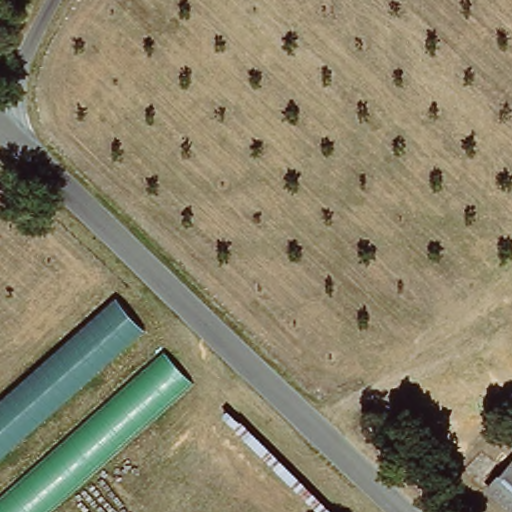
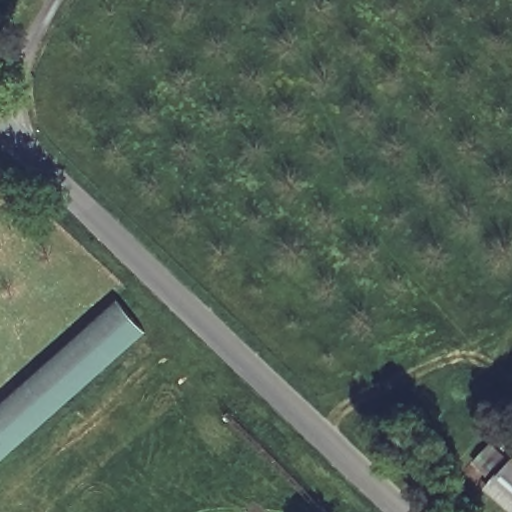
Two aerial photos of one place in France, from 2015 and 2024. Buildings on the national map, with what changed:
unchanged [(115,298),(143,332),(0,457),(0,400),(115,298)]
demolished [(163,348),(192,385),(48,512),(0,512),(0,493),(163,348)]
unchanged [(501,456),(512,465),(512,512),(509,512),(485,492),(504,471),(495,463),(501,456)]

